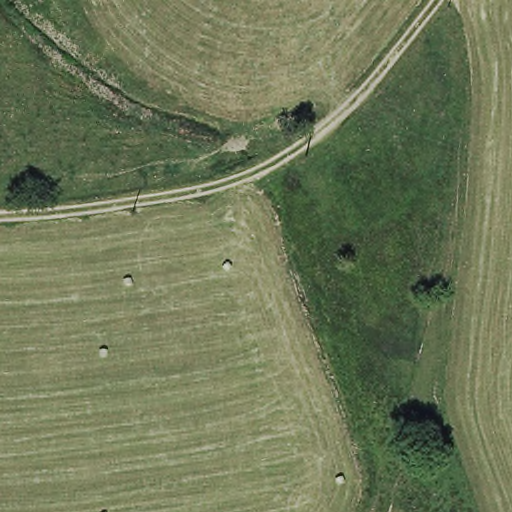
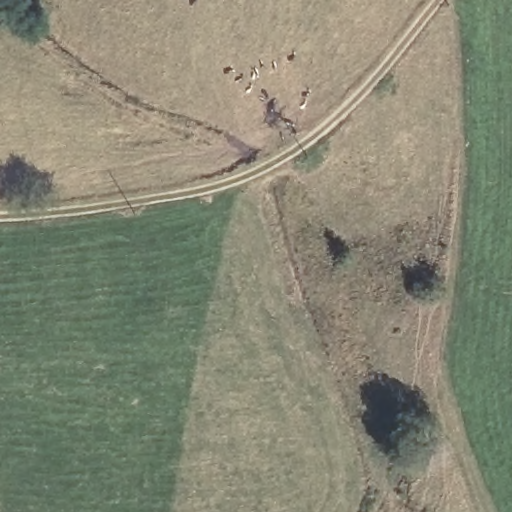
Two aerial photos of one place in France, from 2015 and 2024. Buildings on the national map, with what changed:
[]

